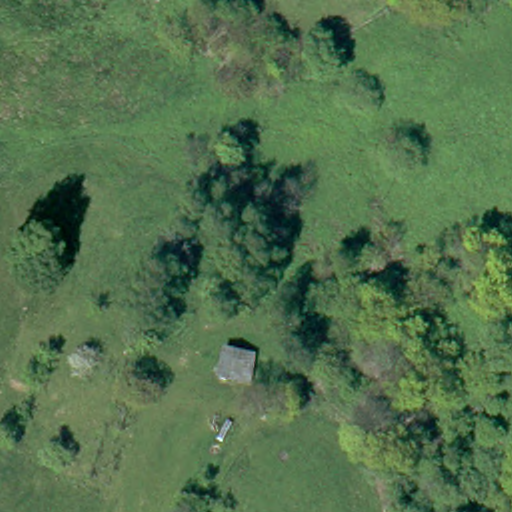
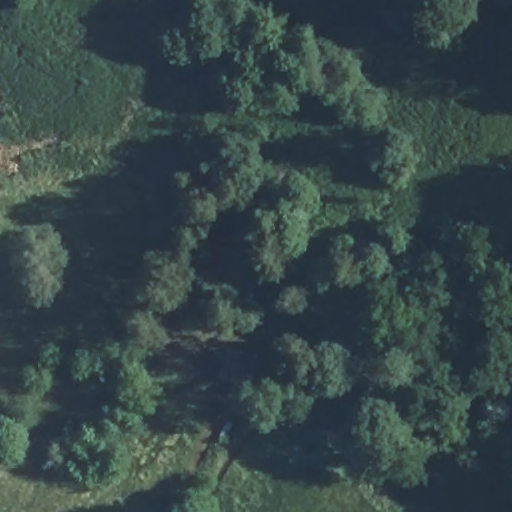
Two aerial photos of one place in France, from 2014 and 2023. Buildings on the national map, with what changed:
unchanged [(220,384),(226,351),(260,358),(253,390),(220,384)]

